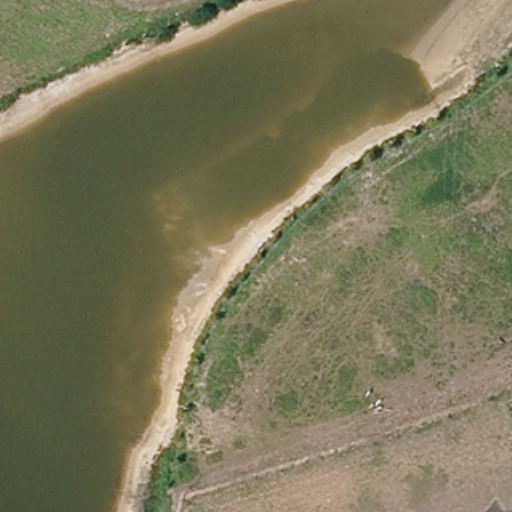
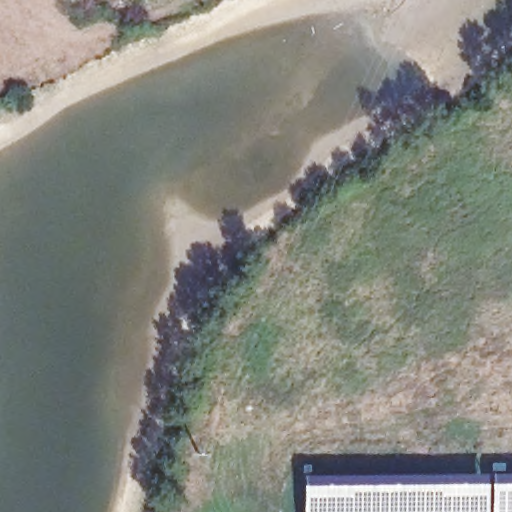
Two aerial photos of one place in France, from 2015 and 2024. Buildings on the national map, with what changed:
new [(512,483),(512,512),(302,512),(302,482),(488,483),(512,483)]

